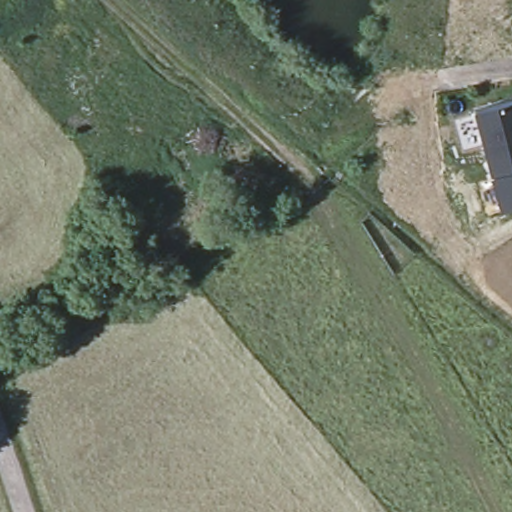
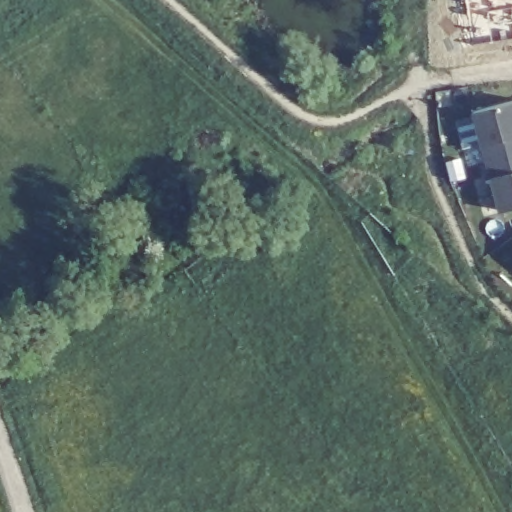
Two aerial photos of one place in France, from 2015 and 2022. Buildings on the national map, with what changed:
unchanged [(474,114),(512,102),(512,209),(500,213),(474,114)]

